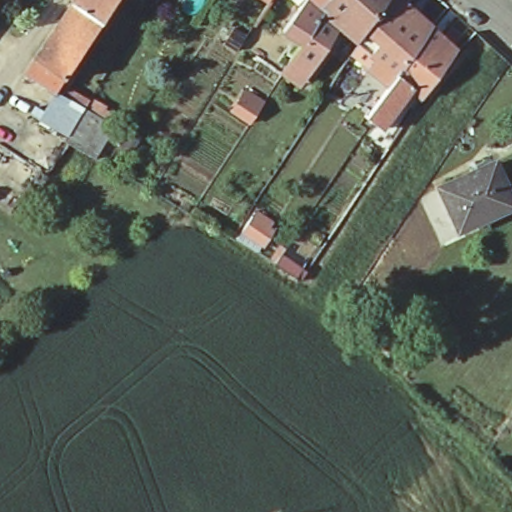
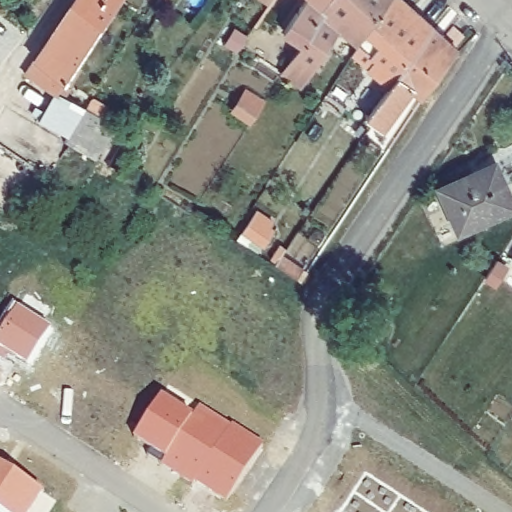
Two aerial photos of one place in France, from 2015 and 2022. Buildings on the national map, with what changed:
unchanged [(67,9),(73,0),(116,0),(97,29),(67,9)]
unchanged [(288,24),(305,0),(387,0),(370,24),(362,35),(342,21),(313,69),(305,82),(286,66),(295,54),(306,36),(288,24)]
unchanged [(407,58),(405,55),(397,65),(400,68),(392,77),(373,60),(380,51),(362,35),(370,24),(387,0),(413,0),(436,20),(407,58)]
unchanged [(97,29),(77,61),(45,42),(67,9),(97,29)]
unchanged [(462,43),(427,90),(415,80),(400,68),(397,65),(405,55),(407,58),(436,20),(462,43)]
unchanged [(77,61),(60,88),(30,66),(45,42),(77,61)]
unchanged [(415,80),(386,123),(368,109),(392,77),(400,68),(415,80)]
unchanged [(66,141),(68,137),(40,121),(58,94),(85,108),(115,126),(95,160),(66,141)]
unchanged [(508,203),(455,229),(435,185),(488,160),(508,203)]
unchanged [(267,230),(260,242),(239,229),(247,217),(267,230)]
unchanged [(279,253),(299,264),(292,277),(272,265),(279,253)]
new [(51,325),(28,359),(0,342),(0,328),(17,304),(51,325)]
new [(192,411),(201,402),(262,442),(225,499),(161,463),(166,455),(133,434),(162,391),(192,411)]
new [(28,512),(9,512),(0,506),(0,460),(42,489),(28,512)]

